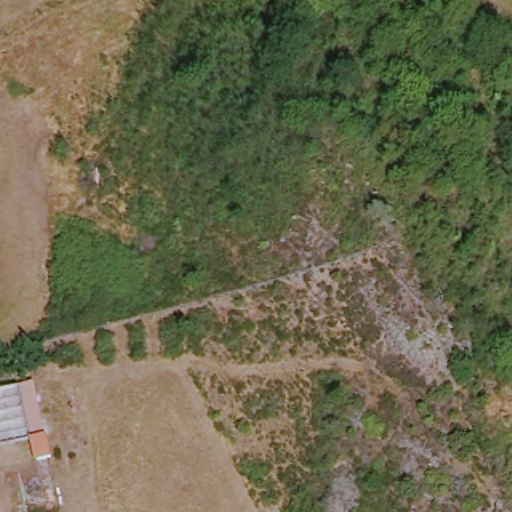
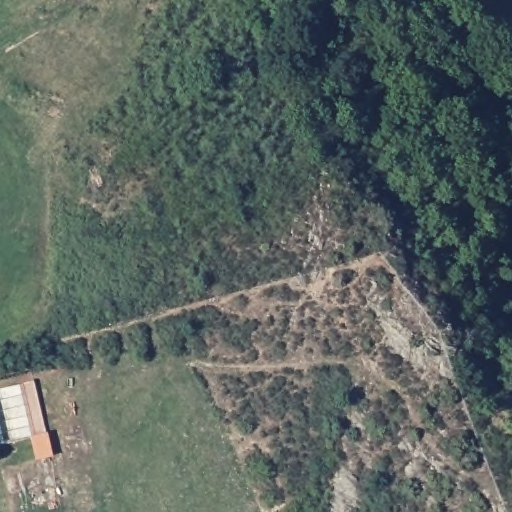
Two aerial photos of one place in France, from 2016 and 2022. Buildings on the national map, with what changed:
unchanged [(32,373),(53,453),(32,458),(12,376),(32,373)]

